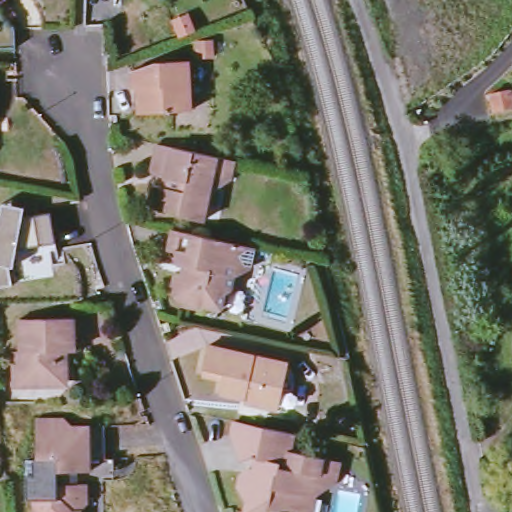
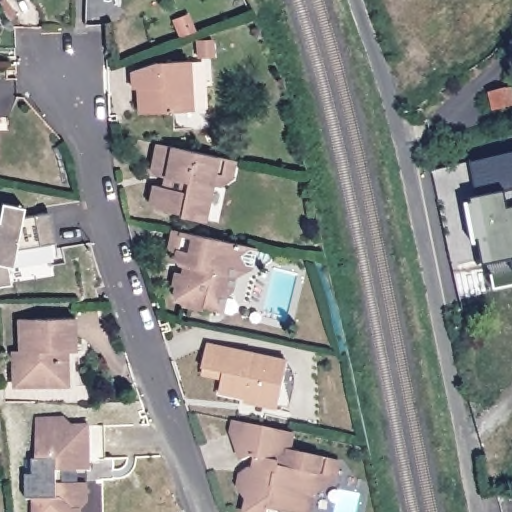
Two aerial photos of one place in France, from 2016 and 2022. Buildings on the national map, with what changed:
unchanged [(6,1),(18,17),(12,21),(11,21),(0,5),(6,1)]
unchanged [(190,16),(196,30),(181,36),(176,21),(190,16)]
unchanged [(137,88),(133,88),(133,71),(155,63),(190,61),(190,111),(140,113),(137,88)]
unchanged [(504,89),(508,89),(511,104),(492,108),(489,93),(504,89)]
unchanged [(181,216),(181,213),(156,209),(150,201),(152,193),(155,186),(163,187),(165,177),(156,175),(152,169),(158,145),(235,161),(231,178),(217,186),(212,185),(207,205),(203,221),(181,216)]
new [(486,266),(482,246),(475,247),(467,205),(466,194),(475,193),(470,161),(512,152),(512,288),(495,291),(486,266)]
unchanged [(53,240),(12,249),(8,267),(10,284),(0,286),(0,206),(1,201),(22,206),(19,218),(48,213),(53,240)]
unchanged [(272,252),(270,263),(264,267),(251,265),(233,276),(230,290),(225,293),(220,310),(203,307),(203,310),(180,304),(181,299),(177,299),(175,295),(176,288),(172,287),(176,274),(184,275),(186,267),(180,266),(175,259),(175,253),(168,251),(173,230),(272,252)]
unchanged [(15,352),(21,352),(21,321),(75,320),(76,352),(70,351),(70,378),(62,387),(30,387),(16,387),(15,377),(15,352)]
unchanged [(220,394),(224,374),(202,370),(208,347),(288,364),(280,407),(220,394)]
unchanged [(72,485),(82,485),(83,501),(77,509),(77,512),(32,512),(31,501),(25,501),(23,461),(33,460),(32,420),(58,419),(68,426),(100,426),(101,460),(86,459),(85,472),(72,472),(72,485)]
unchanged [(316,495),(312,512),(277,512),(270,511),(269,512),(249,512),(247,509),(248,500),(246,500),(238,491),(243,473),(249,468),(257,470),(260,459),(250,456),(243,460),(232,433),(235,422),(295,434),(291,451),(323,458),(340,463),(336,481),(328,487),(316,495)]

